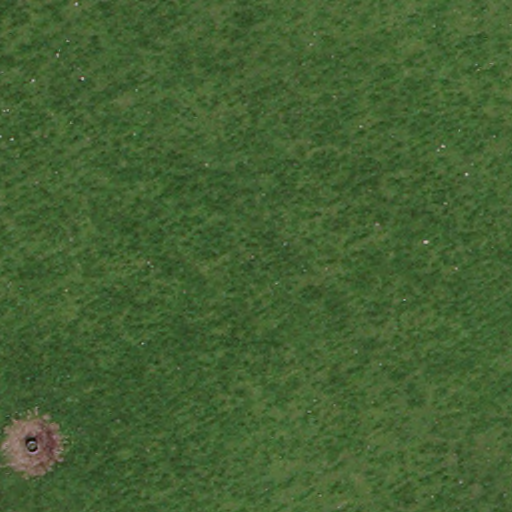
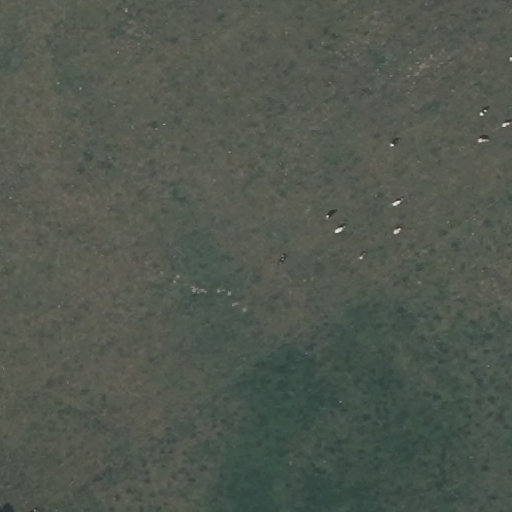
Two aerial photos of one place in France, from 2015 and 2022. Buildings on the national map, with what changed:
[]

